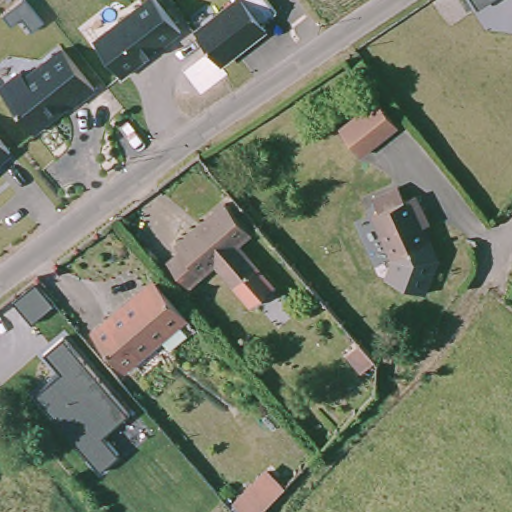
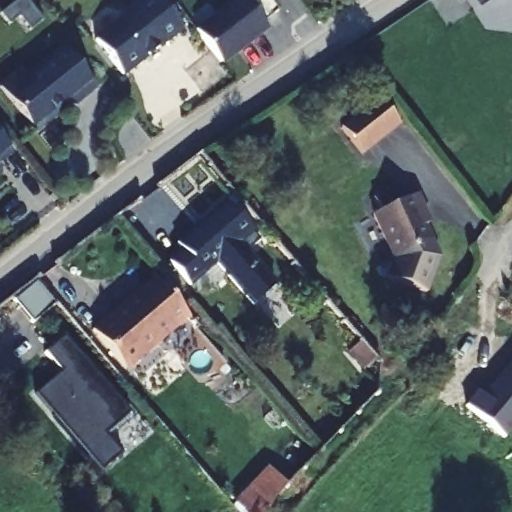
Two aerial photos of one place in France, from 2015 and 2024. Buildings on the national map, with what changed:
unchanged [(182,29),(123,75),(94,36),(140,0),(159,0),(182,29)]
unchanged [(277,10),(263,20),(270,28),(223,63),(195,26),(229,0),(269,0),(277,10)]
unchanged [(477,9),(471,0),(491,0),(477,9)]
unchanged [(97,85),(37,133),(0,87),(0,84),(20,67),(25,73),(62,43),(97,85)]
unchanged [(363,155),(343,130),(360,116),(355,110),(375,94),(380,100),(400,126),(363,155)]
unchanged [(15,152),(0,164),(0,135),(15,152)]
unchanged [(381,212),(375,197),(400,186),(407,201),(418,196),(425,212),(420,216),(432,245),(394,262),(372,216),(381,212)]
unchanged [(254,235),(240,247),(260,270),(236,292),(215,267),(188,292),(166,266),(179,253),(175,248),(227,205),(254,235)]
unchanged [(125,372),(91,333),(107,318),(152,277),(157,282),(187,316),(125,372)]
unchanged [(131,410),(106,432),(122,450),(103,467),(37,391),(60,371),(42,351),(64,332),(131,410)]
new [(482,395),(512,359),(512,431),(505,439),(465,405),(477,391),(482,395)]
unchanged [(272,462),(289,479),(277,491),(257,512),(240,496),(272,462)]

